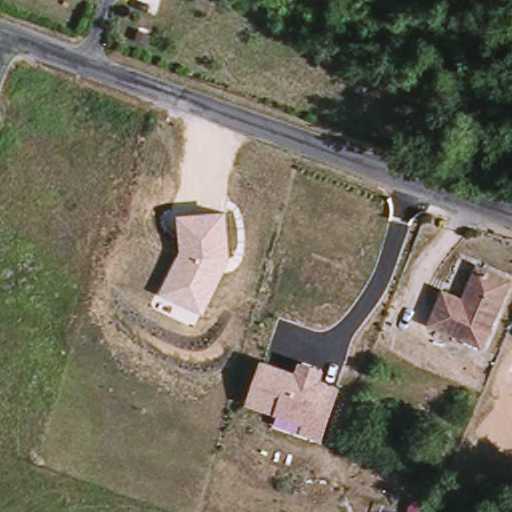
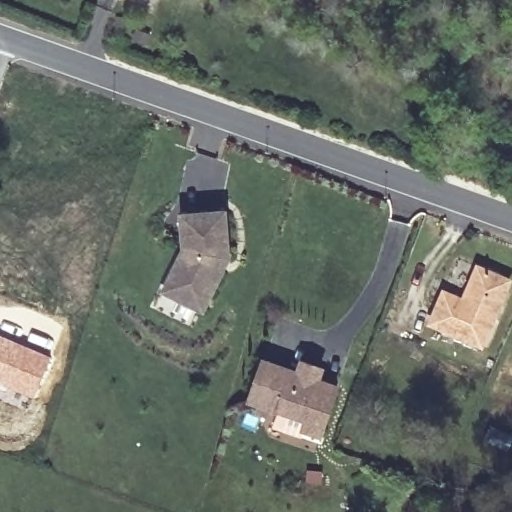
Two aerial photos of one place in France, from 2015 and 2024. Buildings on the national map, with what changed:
unchanged [(227,210),(230,254),(205,311),(162,290),(182,247),(179,215),(227,210)]
unchanged [(483,346),(428,323),(440,292),(462,301),(476,268),(510,281),(483,346)]
new [(51,357),(32,400),(0,385),(0,333),(51,357)]
unchanged [(297,368),(300,358),(324,366),(321,378),(341,385),(322,440),(300,433),(303,422),(247,402),(262,357),(297,368)]

